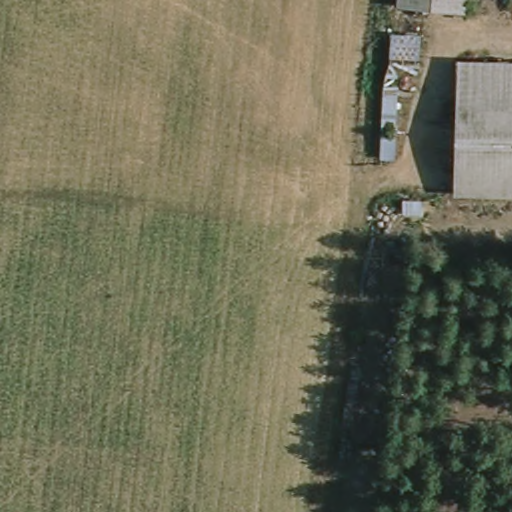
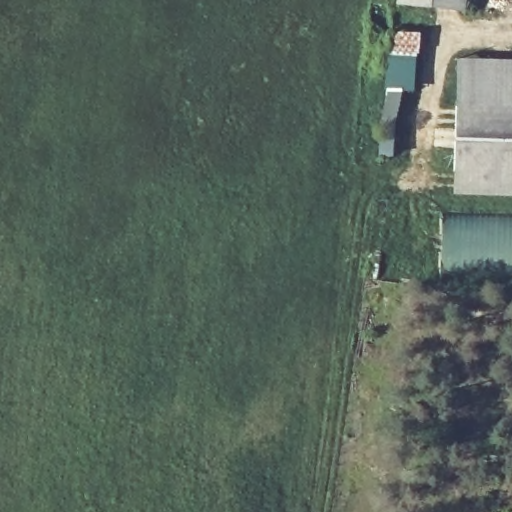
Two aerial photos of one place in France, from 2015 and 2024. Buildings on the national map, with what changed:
unchanged [(400,8),(400,0),(471,0),(470,13),(400,8)]
new [(391,30),(417,34),(409,91),(400,90),(391,156),(374,154),(391,30)]
unchanged [(461,104),(463,59),(512,60),(512,106),(461,104)]
unchanged [(459,173),(461,104),(512,106),(512,174),(459,173)]
unchanged [(458,193),(459,173),(512,174),(512,195),(458,193)]
new [(512,219),(512,272),(443,273),(443,219),(512,219)]

